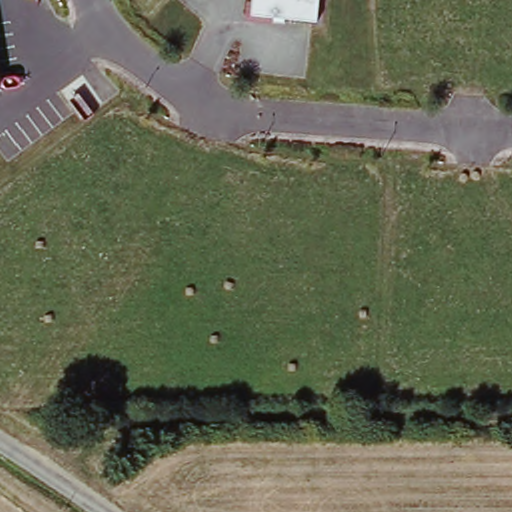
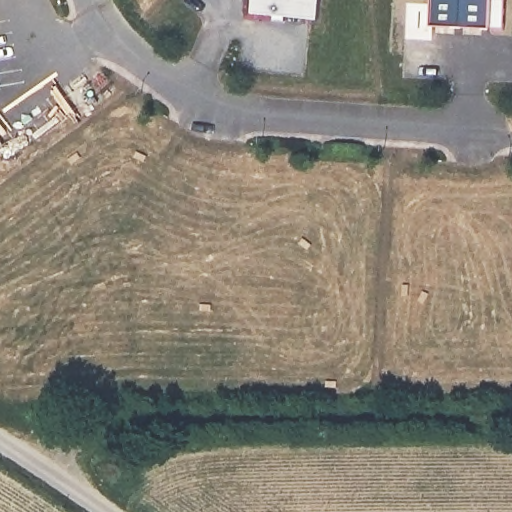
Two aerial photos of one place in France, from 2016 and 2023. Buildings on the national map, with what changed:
unchanged [(318,21),(251,14),(252,0),(320,0),(318,21)]
new [(492,31),(433,28),(434,0),(493,0),(492,31)]

